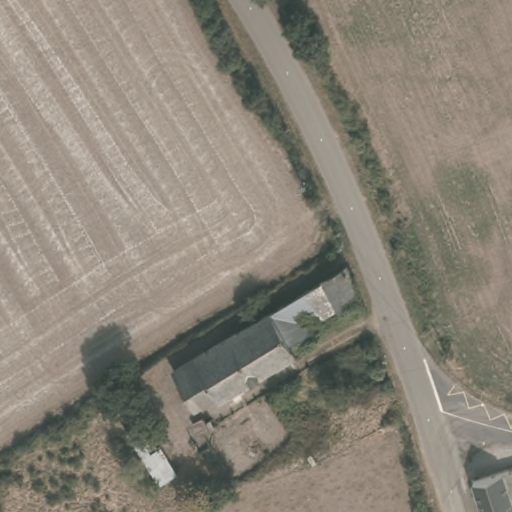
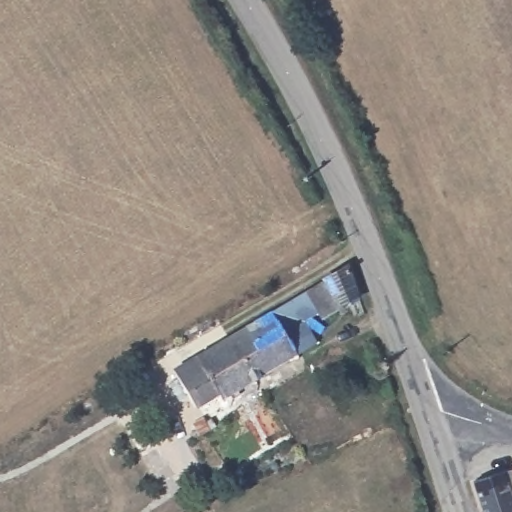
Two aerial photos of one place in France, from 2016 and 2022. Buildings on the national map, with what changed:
unchanged [(360,295),(327,314),(308,281),(346,258),(360,295)]
unchanged [(233,330),(308,281),(327,314),(325,317),(321,309),(307,318),(321,339),(262,379),(233,330)]
unchanged [(230,401),(224,393),(202,408),(175,369),(233,330),(262,379),(230,401)]
unchanged [(473,472),(512,459),(512,512),(486,512),(473,472)]

